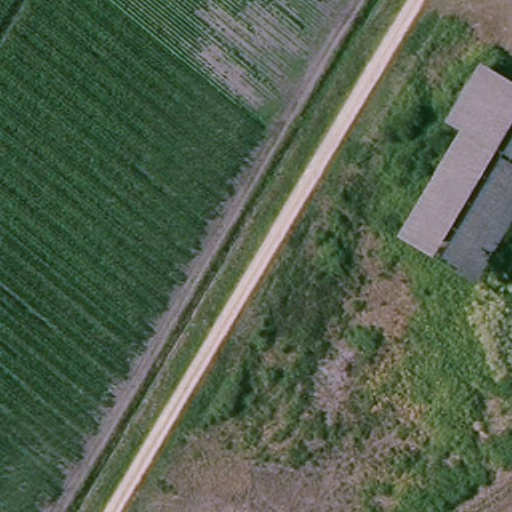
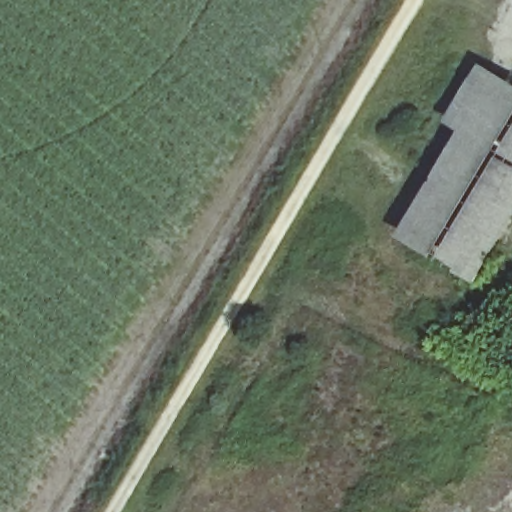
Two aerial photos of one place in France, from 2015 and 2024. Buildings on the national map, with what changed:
unchanged [(458,140),(440,129),(472,72),(512,95),(512,218),(479,275),(406,233),(458,140)]

